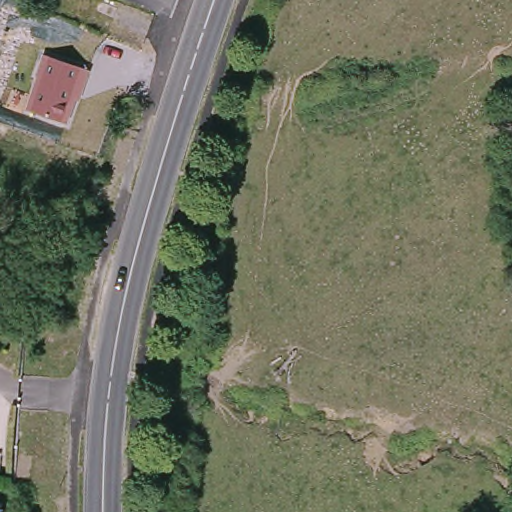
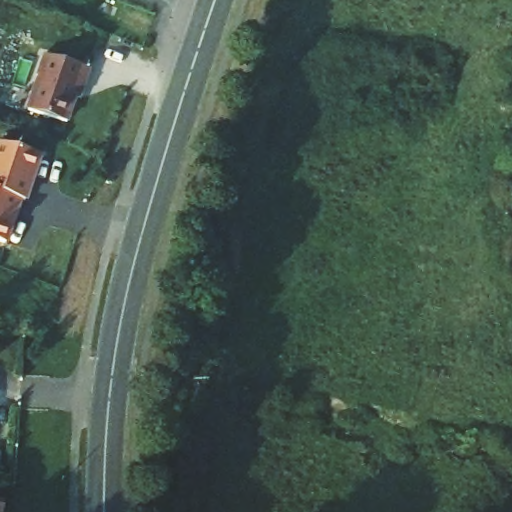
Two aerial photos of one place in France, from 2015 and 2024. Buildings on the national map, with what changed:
unchanged [(75,100),(67,125),(26,111),(36,78),(35,77),(41,56),(91,70),(81,102),(75,100)]
new [(25,198),(20,197),(4,240),(0,239),(0,140),(40,154),(25,198)]

